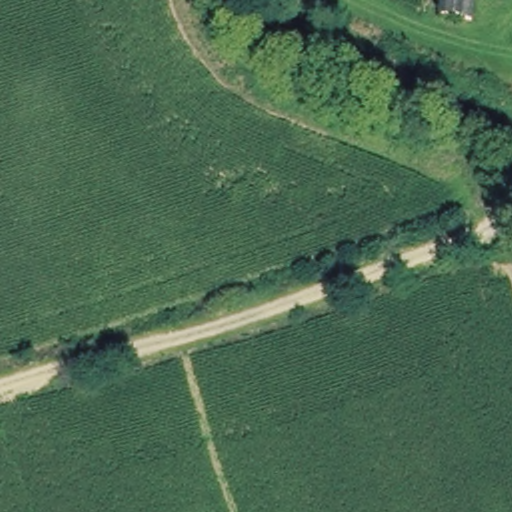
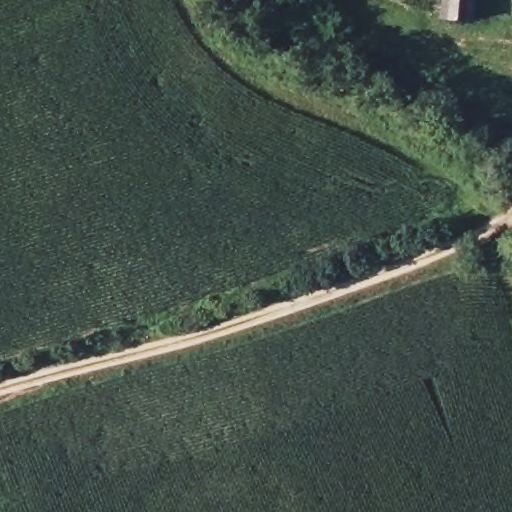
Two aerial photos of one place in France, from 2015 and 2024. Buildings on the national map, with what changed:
unchanged [(438,0),(475,0),(471,22),(435,16),(438,0)]

